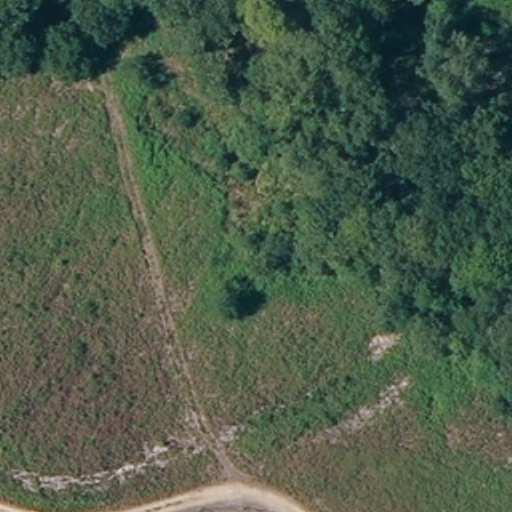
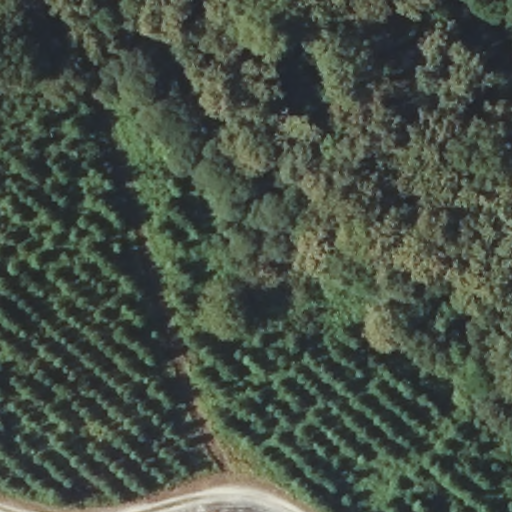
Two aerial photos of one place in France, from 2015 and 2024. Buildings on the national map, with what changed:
[]

